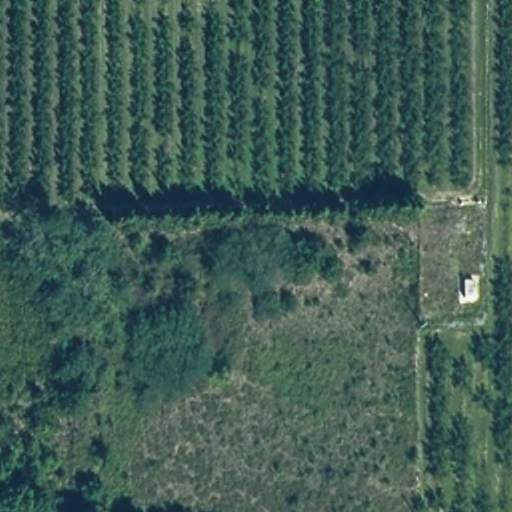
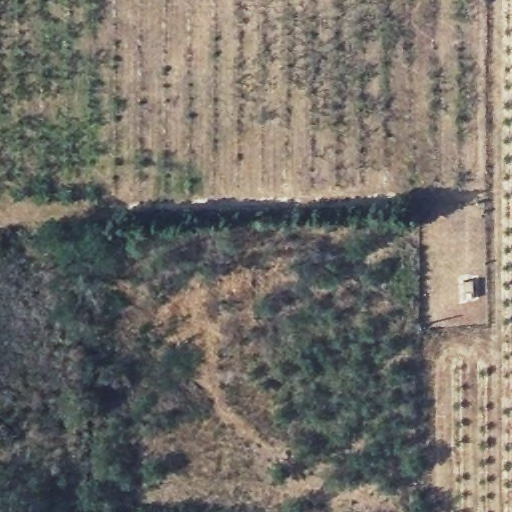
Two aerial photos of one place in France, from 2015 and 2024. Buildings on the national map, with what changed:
[]

